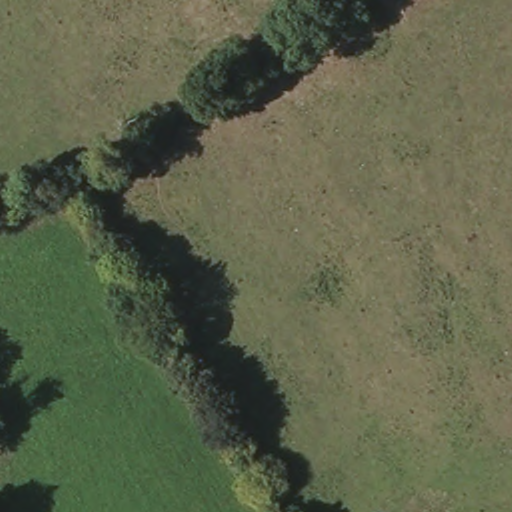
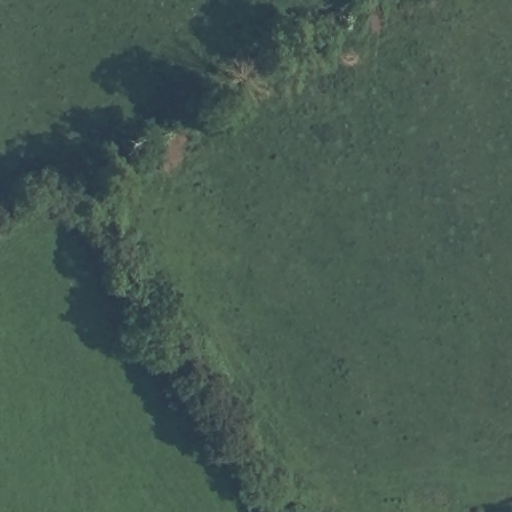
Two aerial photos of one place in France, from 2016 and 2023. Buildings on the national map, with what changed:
[]

